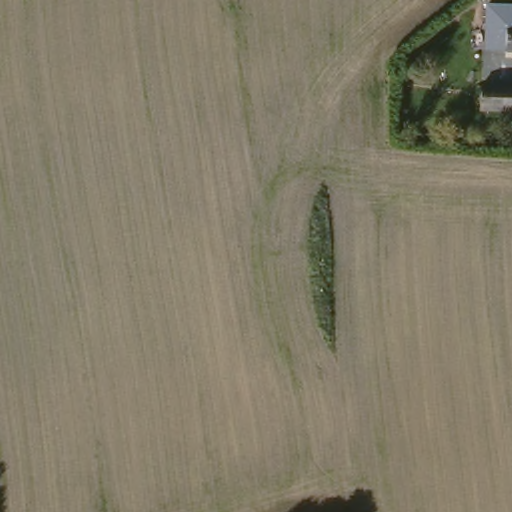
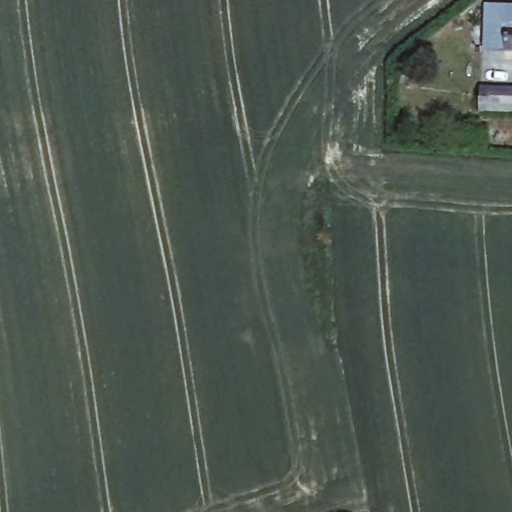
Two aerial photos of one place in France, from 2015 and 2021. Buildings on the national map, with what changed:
unchanged [(486,3),(512,4),(512,26),(502,26),(502,53),(484,52),(486,3)]
unchanged [(502,26),(512,26),(512,53),(502,53),(502,26)]
unchanged [(512,88),(512,111),(481,110),(481,87),(512,88)]

